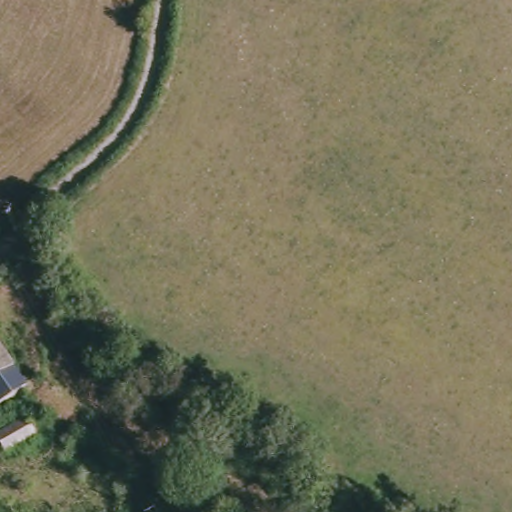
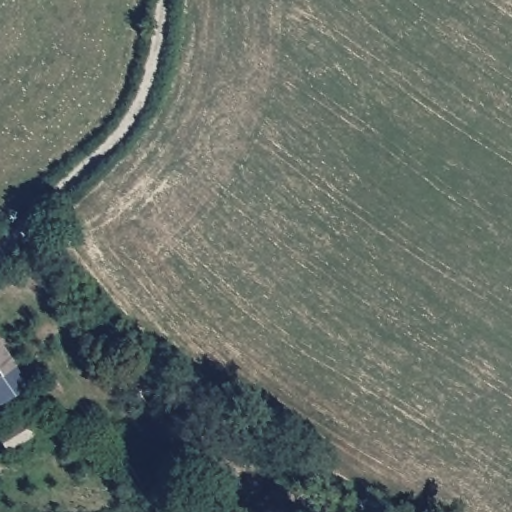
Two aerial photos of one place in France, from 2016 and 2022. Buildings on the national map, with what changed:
unchanged [(31,382),(0,407),(0,339),(31,382)]
unchanged [(10,440),(0,428),(0,421),(24,400),(38,416),(10,440)]

